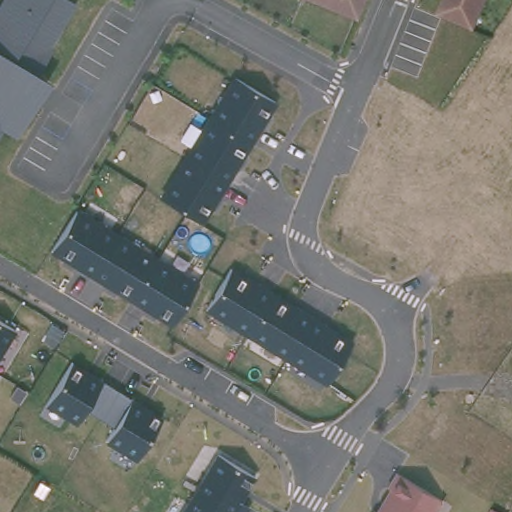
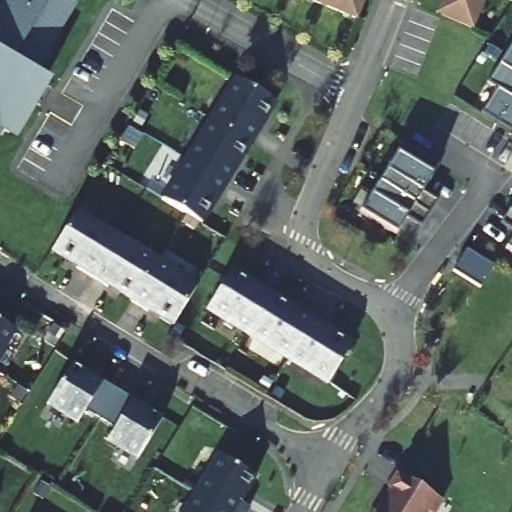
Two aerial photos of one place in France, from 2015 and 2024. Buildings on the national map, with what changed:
unchanged [(77,5),(35,81),(49,91),(19,140),(2,131),(0,136),(0,5),(3,0),(69,0),(77,5)]
unchanged [(305,0),(361,0),(354,19),(351,18),(305,0)]
unchanged [(462,32),(433,18),(441,0),(477,0),(462,32)]
new [(484,112),(497,89),(487,83),(512,46),(512,131),(484,112)]
unchanged [(277,102),(204,224),(159,195),(232,74),(277,102)]
new [(405,216),(394,233),(361,212),(397,154),(432,175),(422,192),(436,201),(421,224),(405,216)]
unchanged [(196,278),(169,324),(49,251),(76,205),(196,278)]
new [(501,224),(510,210),(512,212),(512,231),(501,224)]
new [(506,249),(512,240),(512,253),(506,249)]
new [(467,249),(494,266),(481,288),(453,271),(467,249)]
unchanged [(353,337),(325,382),(205,308),(232,264),(353,337)]
unchanged [(0,355),(0,322),(15,331),(0,355)]
unchanged [(162,414),(135,460),(107,442),(115,427),(86,408),(75,424),(45,404),(75,358),(162,414)]
unchanged [(240,499),(253,508),(251,512),(179,512),(214,452),(255,475),(240,499)]
unchanged [(433,512),(370,512),(375,504),(377,506),(388,488),(384,485),(395,468),(441,499),(433,512)]

